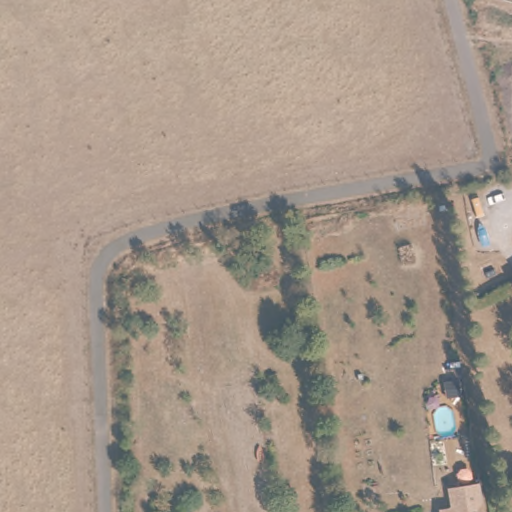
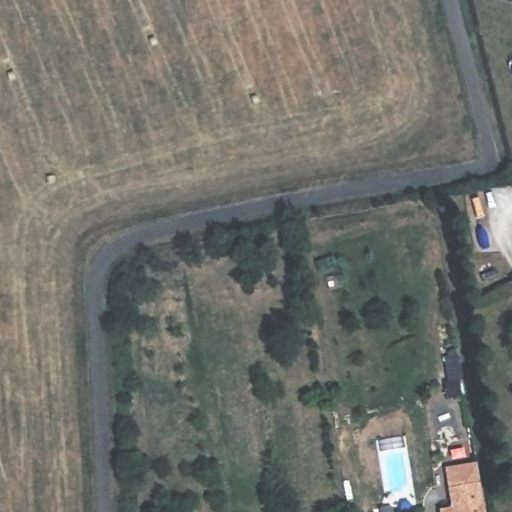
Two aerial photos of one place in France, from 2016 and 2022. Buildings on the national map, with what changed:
unchanged [(453,510),(450,490),(481,485),(485,512),(441,512),(441,511),(453,510)]

